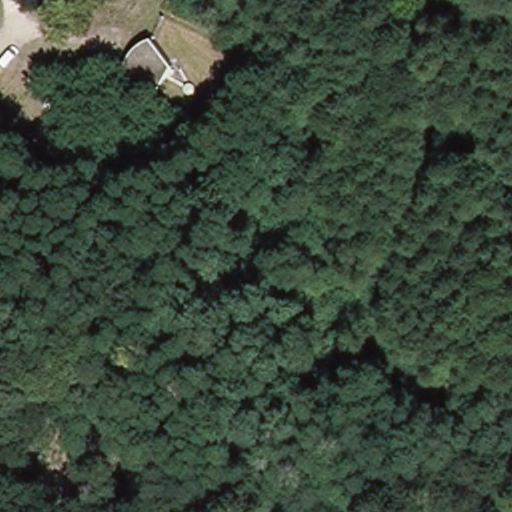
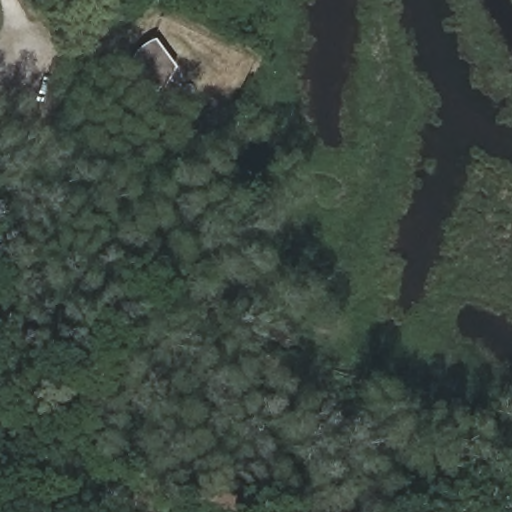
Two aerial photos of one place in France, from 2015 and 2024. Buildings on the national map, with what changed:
unchanged [(128,76),(142,46),(179,64),(165,93),(128,76)]

